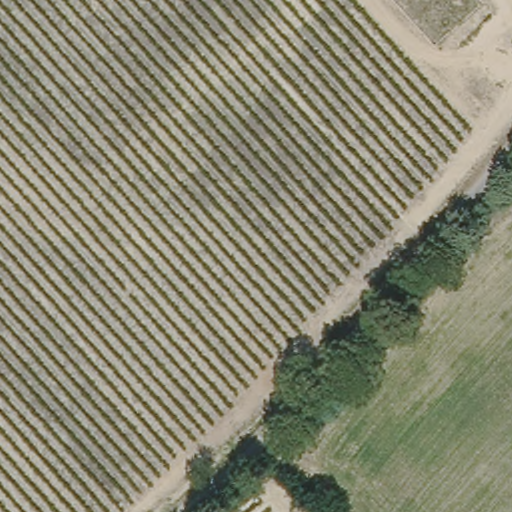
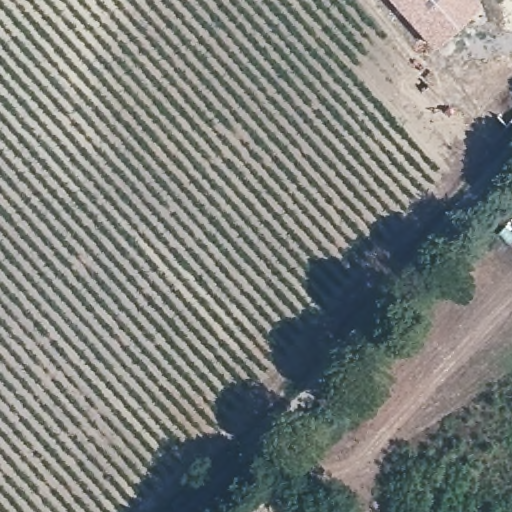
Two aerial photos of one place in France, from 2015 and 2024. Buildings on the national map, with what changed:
new [(482,2),(434,47),(392,0),(480,0),(482,2)]

